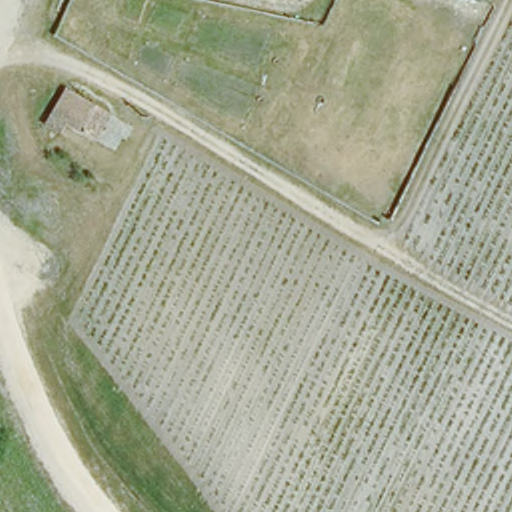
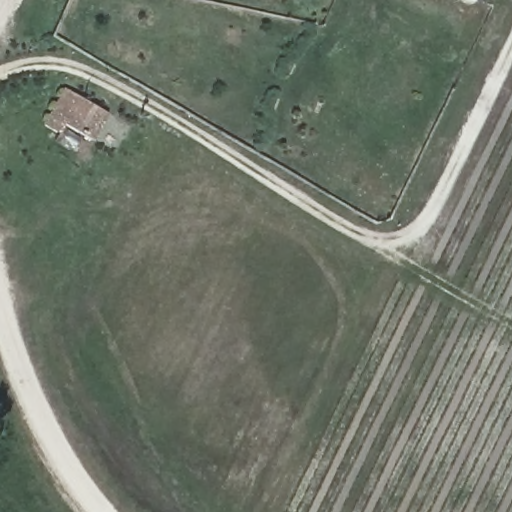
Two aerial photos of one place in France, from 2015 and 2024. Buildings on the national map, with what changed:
unchanged [(104,107),(87,136),(55,117),(52,121),(49,120),(44,117),(62,84),(104,107)]

